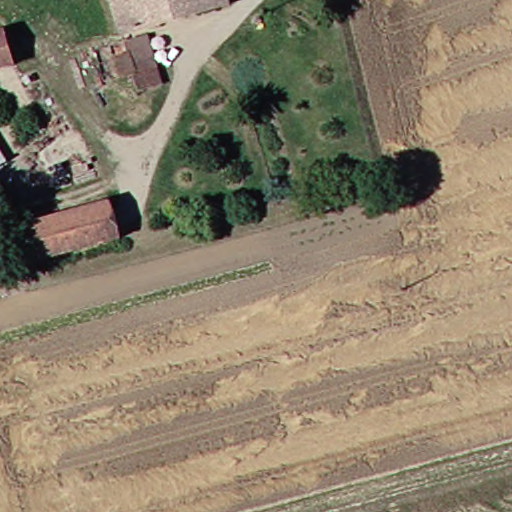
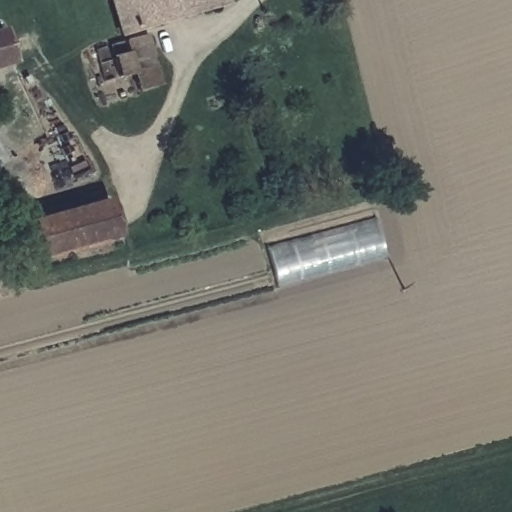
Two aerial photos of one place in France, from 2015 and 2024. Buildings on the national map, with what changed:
unchanged [(111,0),(221,0),(223,5),(120,35),(111,0)]
unchanged [(142,97),(137,81),(120,86),(110,51),(152,40),(159,76),(164,91),(142,97)]
unchanged [(6,71),(0,72),(0,41),(6,71)]
unchanged [(106,204),(113,241),(43,260),(34,262),(25,225),(31,223),(106,204)]
new [(376,217),(387,257),(279,287),(270,247),(376,217)]

